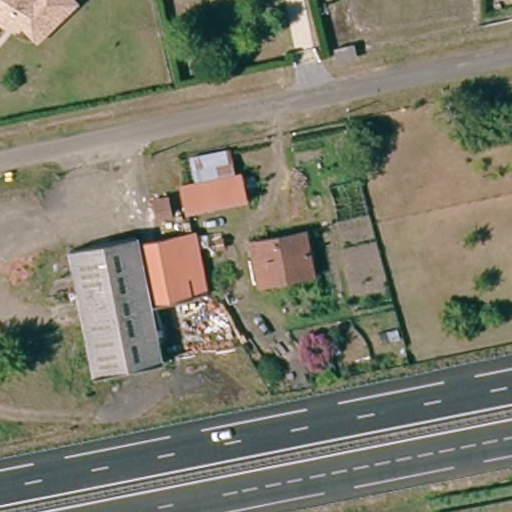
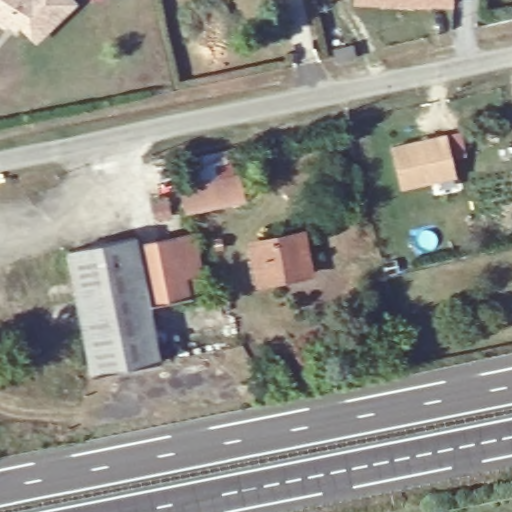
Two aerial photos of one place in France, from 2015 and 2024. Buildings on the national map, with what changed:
unchanged [(76,3),(39,39),(27,26),(23,11),(18,8),(8,24),(0,19),(0,0),(74,0),(76,3)]
new [(431,2),(394,0),(431,0),(431,2)]
unchanged [(338,55),(334,38),(350,34),(353,52),(338,55)]
new [(460,130),(466,155),(453,159),(456,178),(401,190),(390,145),(460,130)]
unchanged [(235,167),(240,190),(183,203),(178,179),(235,167)]
unchanged [(168,196),(171,211),(160,213),(157,198),(168,196)]
unchanged [(136,233),(138,242),(194,231),(206,291),(151,303),(162,359),(96,373),(69,246),(136,233)]
unchanged [(299,235),(308,275),(255,285),(247,246),(299,235)]

